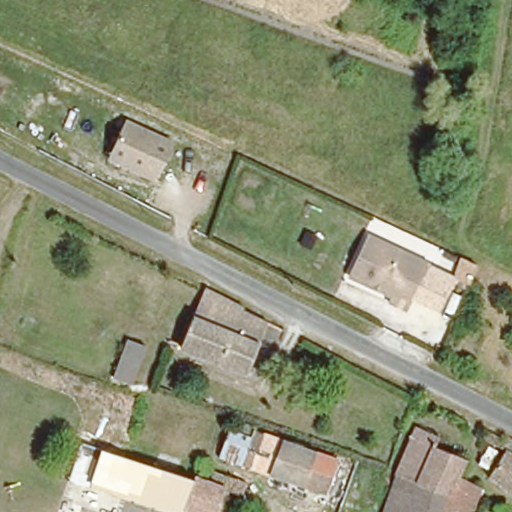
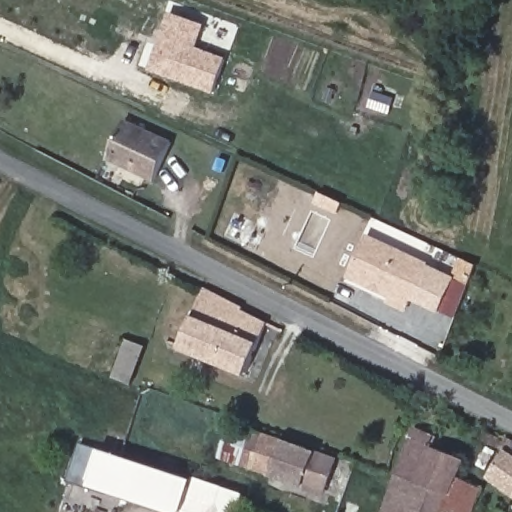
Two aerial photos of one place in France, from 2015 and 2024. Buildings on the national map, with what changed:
new [(164,27),(173,14),(205,25),(197,47),(227,58),(214,94),(149,70),(164,27)]
unchanged [(156,182),(108,159),(126,120),(174,141),(156,182)]
unchanged [(408,315),(387,305),(390,300),(348,279),(368,237),(428,266),(408,315)]
unchanged [(428,266),(452,275),(459,258),(476,264),(470,284),(456,279),(440,313),(414,301),(428,266)]
unchanged [(246,305),(244,311),(270,324),(248,378),(183,350),(192,325),(210,285),(246,305)]
unchanged [(120,362),(133,328),(157,336),(143,371),(120,362)]
unchanged [(400,476),(422,485),(431,458),(410,450),(421,417),(435,423),(432,432),(439,435),(436,446),(467,458),(461,478),(486,490),(477,512),(387,512),(391,502),(400,476)]
unchanged [(257,428),(338,457),(326,492),(221,457),(231,431),(240,433),(243,422),(257,428)]
unchanged [(512,487),(508,494),(490,481),(505,450),(485,440),(490,430),(512,440),(512,487)]
unchanged [(165,507),(70,476),(84,445),(172,475),(165,507)]
unchanged [(214,505),(212,512),(204,512),(193,508),(191,512),(180,512),(165,507),(172,475),(174,470),(221,487),(214,505)]
unchanged [(512,487),(512,497),(508,494),(512,487)]

